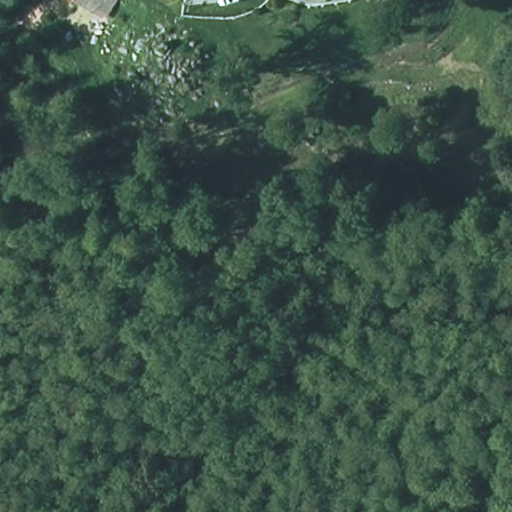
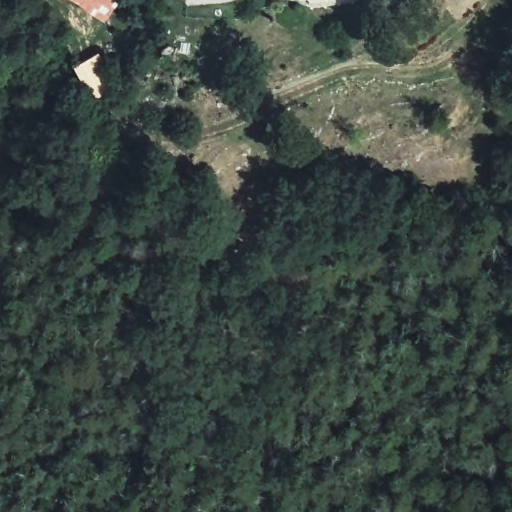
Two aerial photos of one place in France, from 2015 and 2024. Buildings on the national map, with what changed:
unchanged [(75,1),(73,0),(120,0),(106,21),(75,1)]

